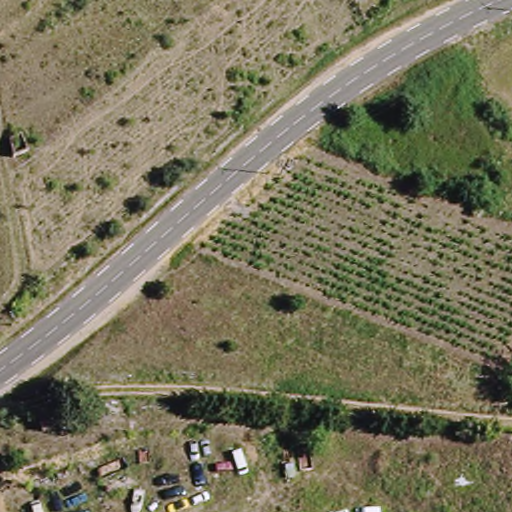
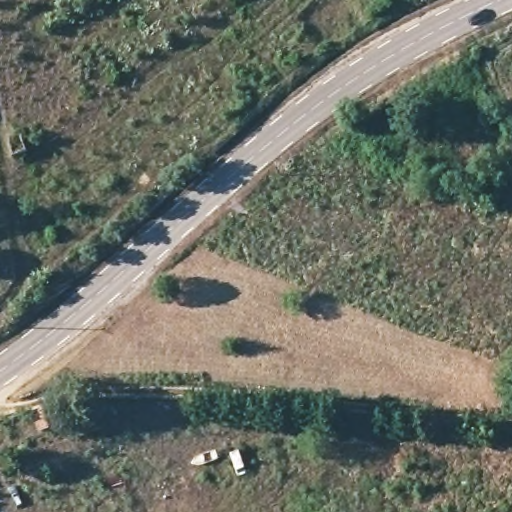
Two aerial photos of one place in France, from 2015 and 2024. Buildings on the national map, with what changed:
unchanged [(73,428),(51,433),(42,416),(63,411),(73,428)]

